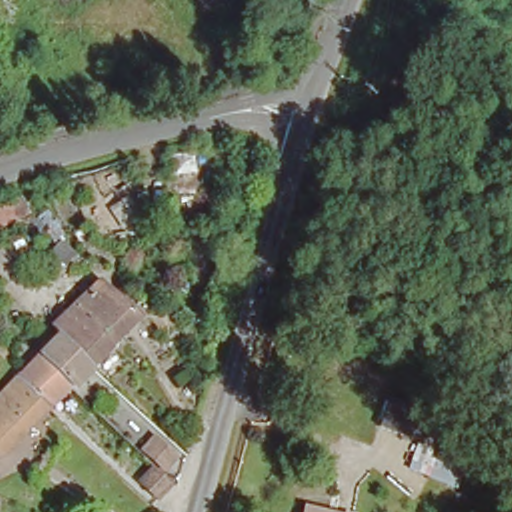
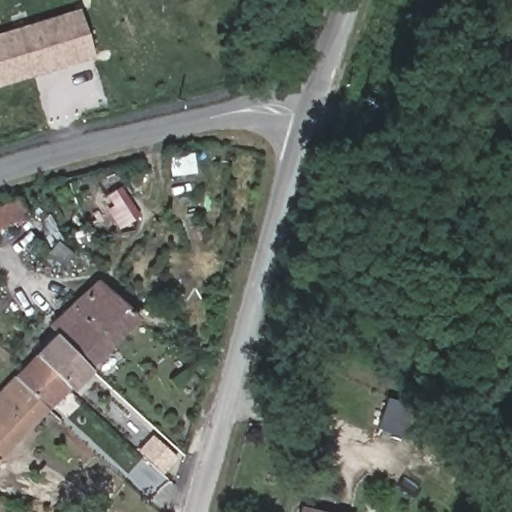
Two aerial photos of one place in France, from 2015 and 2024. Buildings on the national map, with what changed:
demolished [(211,0),(232,0),(215,9),(211,0)]
new [(93,57),(0,86),(0,31),(77,7),(93,57)]
unchanged [(110,151),(123,166),(111,176),(98,162),(110,151)]
new [(26,216),(0,228),(0,206),(17,197),(26,216)]
unchanged [(89,363),(66,341),(59,333),(52,326),(80,301),(101,282),(140,317),(89,363)]
unchanged [(65,385),(35,355),(48,342),(59,333),(66,341),(89,363),(65,385)]
unchanged [(65,385),(41,406),(12,375),(23,364),(35,355),(65,385)]
unchanged [(41,406),(0,443),(0,386),(12,375),(41,406)]
unchanged [(427,402),(419,432),(380,421),(388,392),(427,402)]
new [(407,468),(419,433),(440,441),(436,451),(465,463),(455,488),(427,476),(407,468)]
unchanged [(157,442),(177,463),(166,474),(146,453),(157,442)]
unchanged [(169,487),(152,505),(130,481),(147,466),(169,487)]
unchanged [(320,512),(306,512),(306,508),(320,512)]

